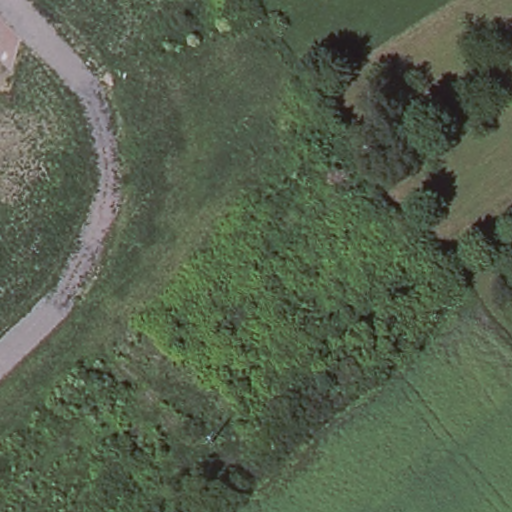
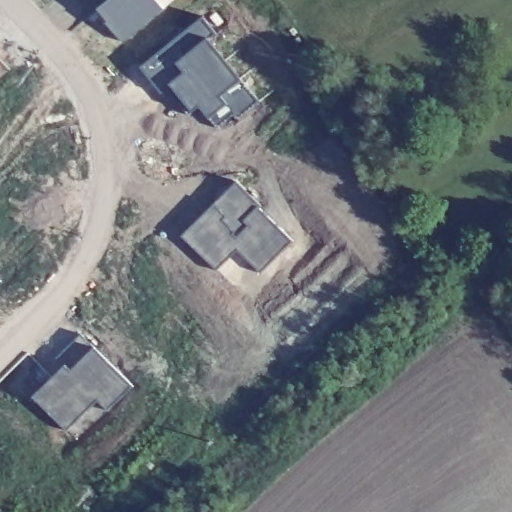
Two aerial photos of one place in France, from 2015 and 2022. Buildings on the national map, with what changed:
new [(163,11),(122,44),(107,25),(108,23),(99,12),(95,15),(83,0),(154,0),(163,11)]
new [(203,18),(215,35),(207,42),(259,103),(221,132),(199,105),(190,114),(170,87),(161,95),(140,68),(203,18)]
new [(215,206),(227,218),(223,222),(235,234),(233,236),(237,240),(250,227),(245,223),(258,209),(292,243),(240,296),(183,238),(215,206)]
new [(65,368),(57,360),(81,336),(131,388),(76,442),(34,398),(65,368)]

